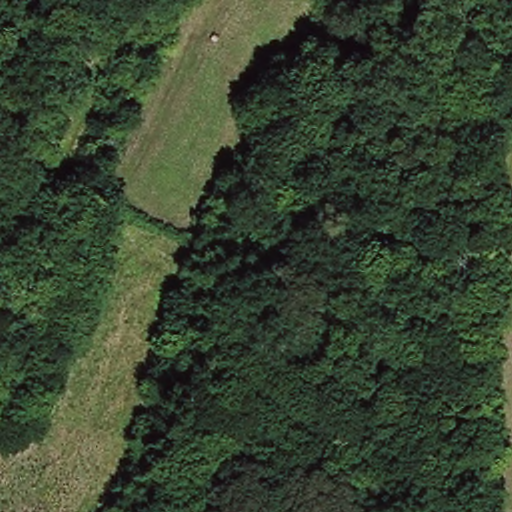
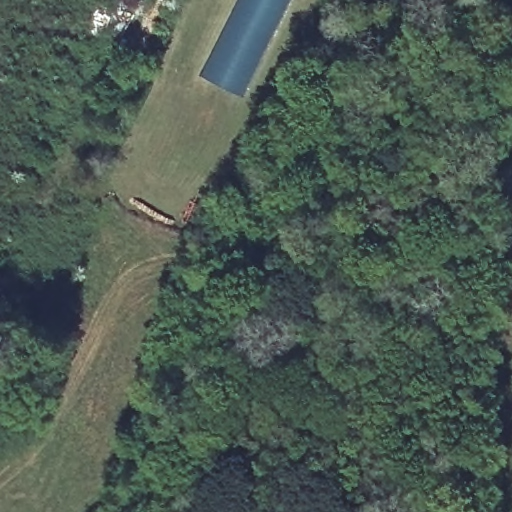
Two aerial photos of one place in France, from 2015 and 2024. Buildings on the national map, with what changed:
new [(290,0),(241,97),(199,76),(237,0),(290,0)]

